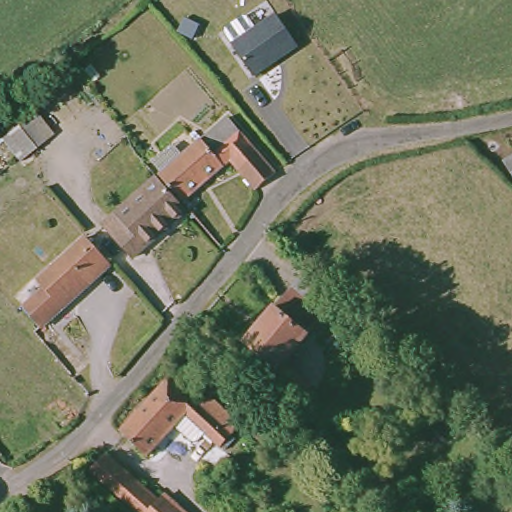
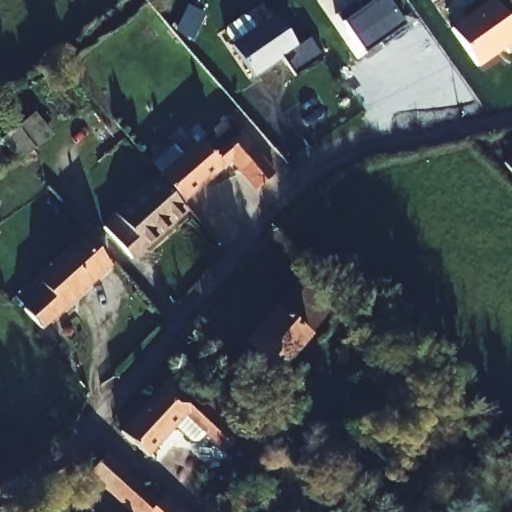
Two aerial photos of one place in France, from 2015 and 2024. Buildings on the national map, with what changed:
new [(361,6),(367,15),(388,0),(389,0),(414,34),(400,44),(397,40),(370,59),(342,20),(361,6)]
new [(512,21),(512,54),(509,49),(482,67),(457,31),(499,2),(512,21)]
unchanged [(307,56),(262,85),(240,54),(286,25),(307,56)]
unchanged [(16,160),(1,141),(20,127),(31,119),(44,131),(56,120),(69,131),(44,154),(37,145),(16,160)]
unchanged [(222,251),(161,175),(169,170),(157,159),(181,140),(191,152),(234,119),(250,138),(281,177),(262,195),(235,164),(194,196),(232,242),(222,251)]
unchanged [(512,168),(512,178),(507,171),(512,168)]
unchanged [(186,210),(133,261),(105,231),(157,179),(186,210)]
unchanged [(44,331),(35,322),(19,303),(89,241),(112,270),(50,325),(87,369),(77,380),(39,336),(44,331)]
unchanged [(304,270),(336,301),(323,318),(289,290),(304,270)]
unchanged [(323,318),(287,367),(312,387),(302,400),(274,378),(276,375),(244,348),(289,290),(323,318)]
unchanged [(200,405),(210,395),(244,421),(231,435),(237,440),(225,452),(200,431),(166,471),(121,432),(167,378),(200,405)]
unchanged [(148,512),(131,512),(85,470),(102,452),(158,501),(148,512)]
unchanged [(162,495),(181,512),(148,512),(158,501),(162,495)]

